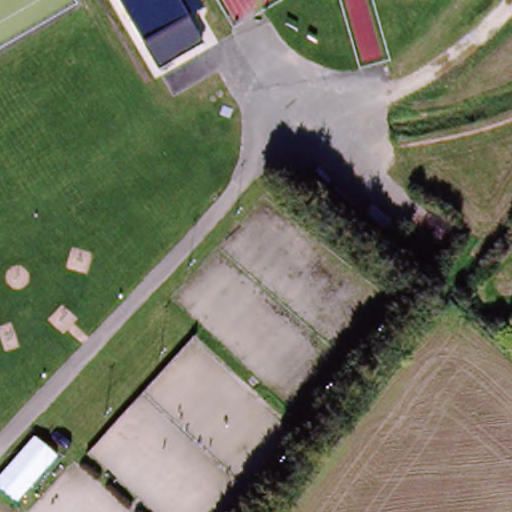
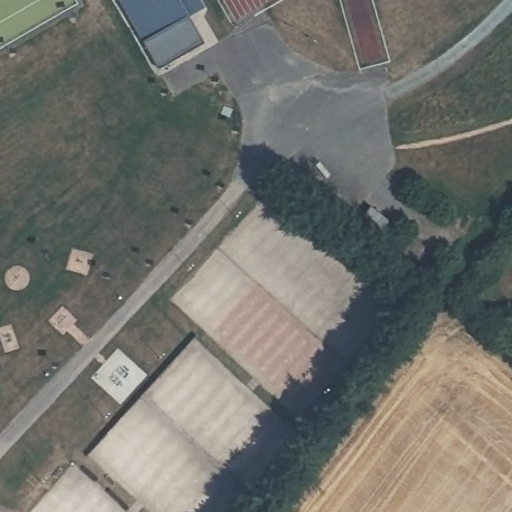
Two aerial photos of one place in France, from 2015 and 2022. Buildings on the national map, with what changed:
unchanged [(120,0),(199,0),(205,9),(189,17),(203,44),(159,69),(120,0)]

